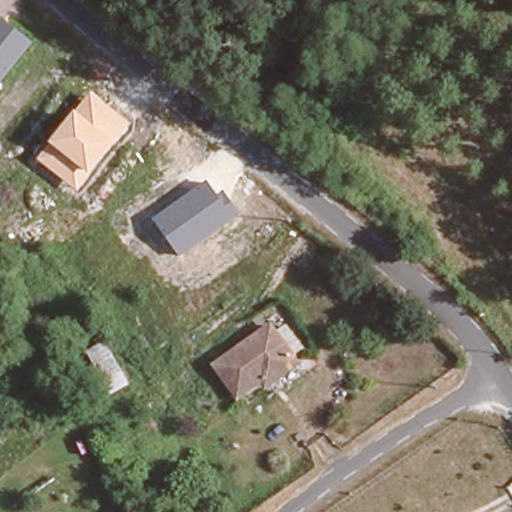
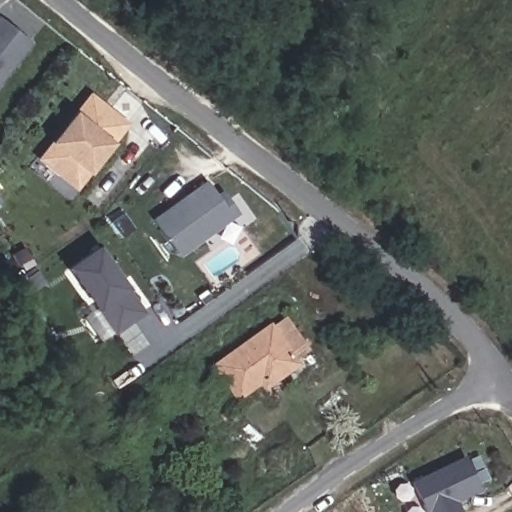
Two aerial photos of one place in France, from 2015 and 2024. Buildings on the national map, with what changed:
unchanged [(0,85),(0,17),(34,44),(0,85)]
unchanged [(129,124),(114,143),(89,175),(77,190),(39,160),(50,145),(75,113),(92,93),(129,124)]
unchanged [(240,215),(180,258),(152,220),(206,181),(216,196),(224,190),(240,215)]
new [(101,247),(148,312),(119,333),(72,268),(101,247)]
unchanged [(258,383),(235,400),(213,369),(270,329),(296,366),(275,382),(263,390),(258,383)]
new [(465,455),(482,490),(456,502),(461,512),(425,512),(410,481),(465,455)]

